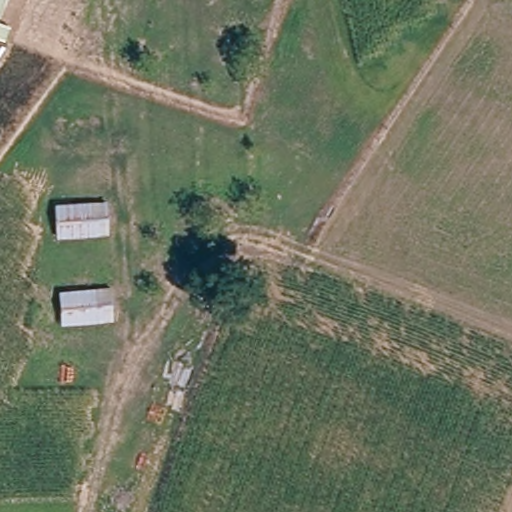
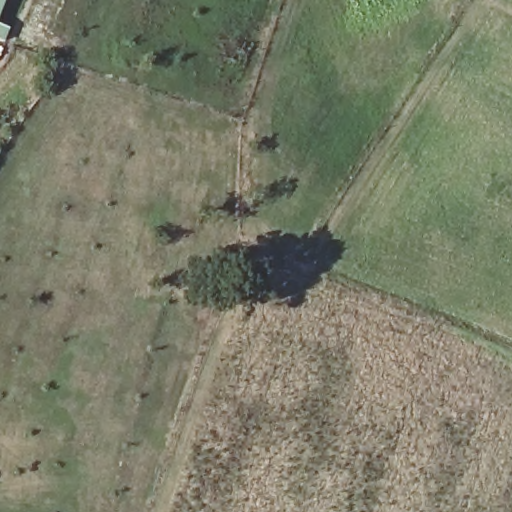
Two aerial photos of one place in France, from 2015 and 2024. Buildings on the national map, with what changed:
unchanged [(0,0),(1,0),(0,4),(0,0)]
unchanged [(2,39),(0,39),(0,22),(7,26),(2,39)]
demolished [(105,203),(106,234),(59,234),(59,203),(105,203)]
demolished [(66,319),(67,289),(114,290),(113,319),(66,319)]

